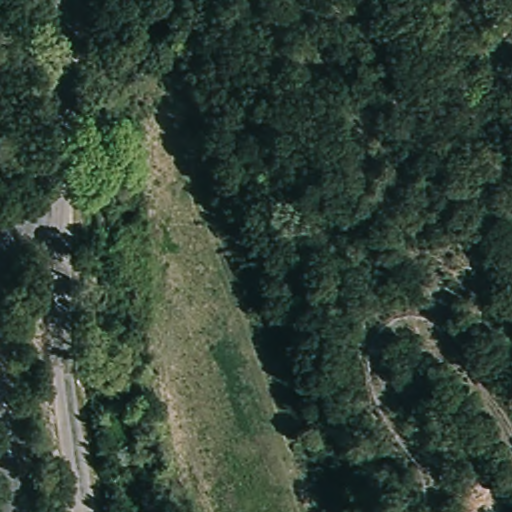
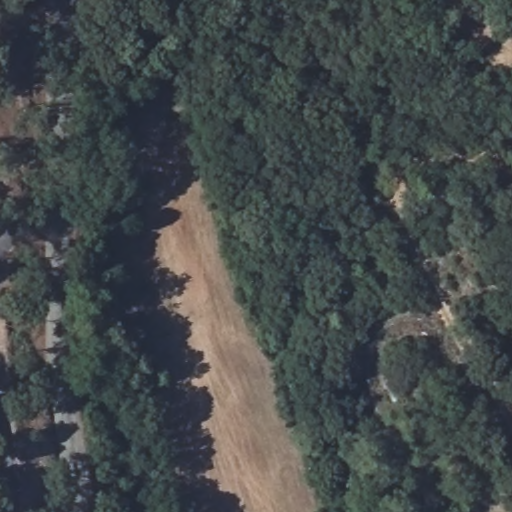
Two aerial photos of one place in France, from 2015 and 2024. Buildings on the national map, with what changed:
[]

